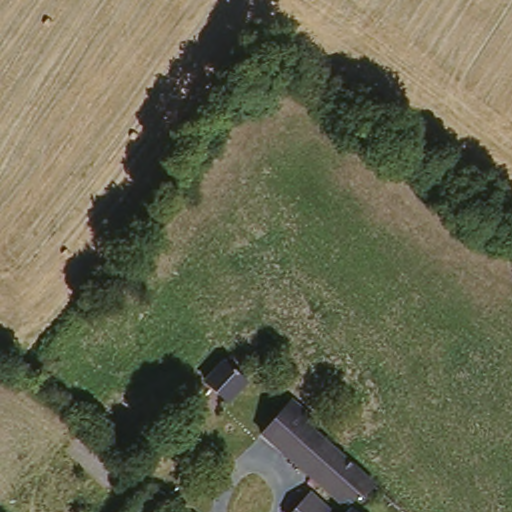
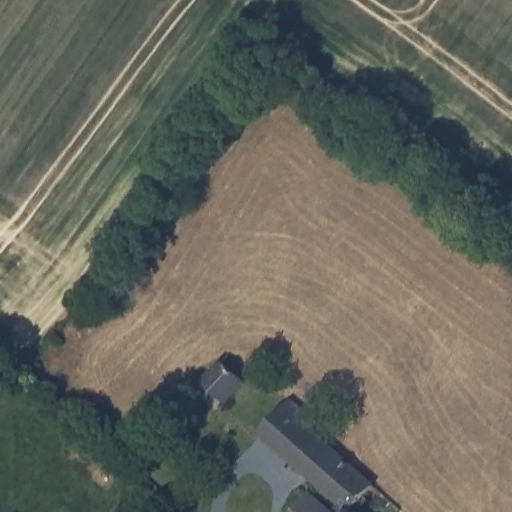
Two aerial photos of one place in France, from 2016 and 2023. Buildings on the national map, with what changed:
unchanged [(246,388),(229,408),(206,390),(225,370),(246,388)]
unchanged [(358,511),(359,512),(348,512),(261,437),(283,413),(373,493),(358,511)]
unchanged [(311,496),(330,512),(298,512),(311,496)]

